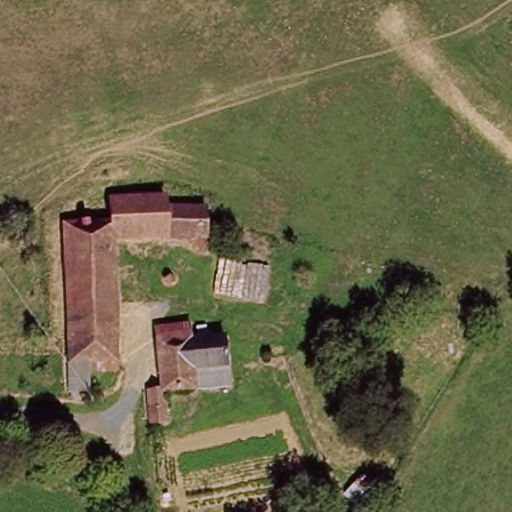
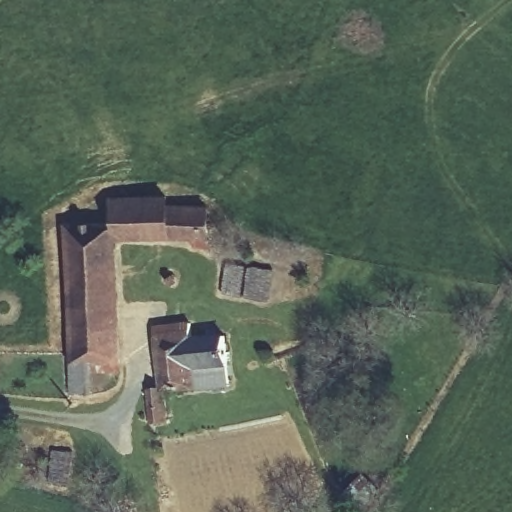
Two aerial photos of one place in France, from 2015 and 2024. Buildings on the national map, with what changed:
unchanged [(120,238),(119,222),(110,223),(110,195),(170,194),(170,202),(172,236),(120,238)]
unchanged [(210,201),(210,235),(172,236),(170,202),(210,201)]
unchanged [(124,360),(92,362),(92,390),(74,390),(66,225),(110,223),(119,222),(120,238),(124,360)]
unchanged [(195,362),(195,385),(165,386),(165,418),(147,418),(147,381),(162,381),(160,323),(193,322),(194,335),(227,333),(227,361),(195,362)]

